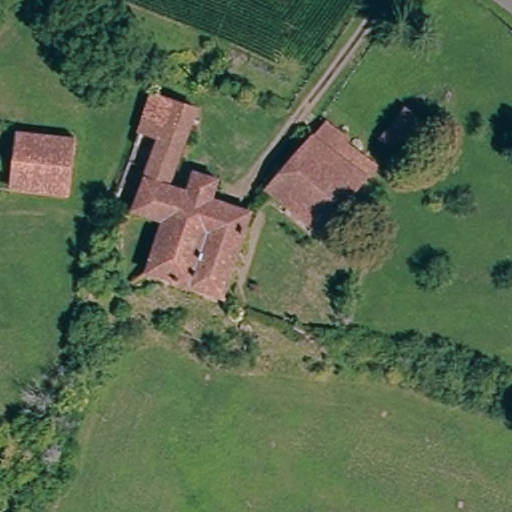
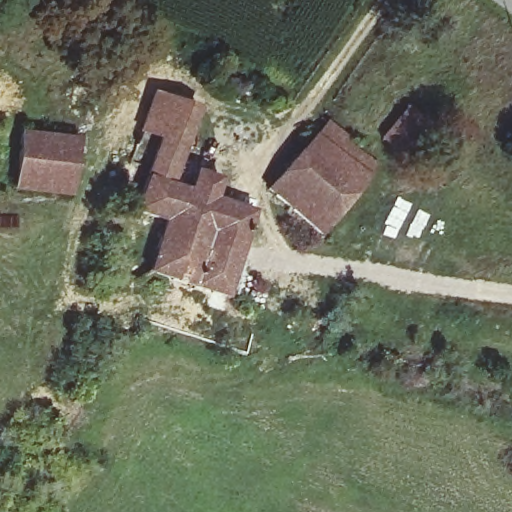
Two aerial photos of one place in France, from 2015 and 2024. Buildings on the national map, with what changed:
unchanged [(180,100),(168,137),(141,128),(153,90),(180,100)]
unchanged [(180,100),(201,108),(173,189),(190,195),(198,174),(221,182),(214,202),(254,216),(230,295),(147,267),(165,215),(145,212),(168,137),(180,100)]
unchanged [(407,153),(390,138),(415,107),(432,121),(431,122),(408,150),(407,153)]
unchanged [(349,146),(376,171),(319,237),(269,191),(330,120),(352,140),(349,146)]
unchanged [(75,198),(13,189),(21,132),(83,136),(75,198)]

